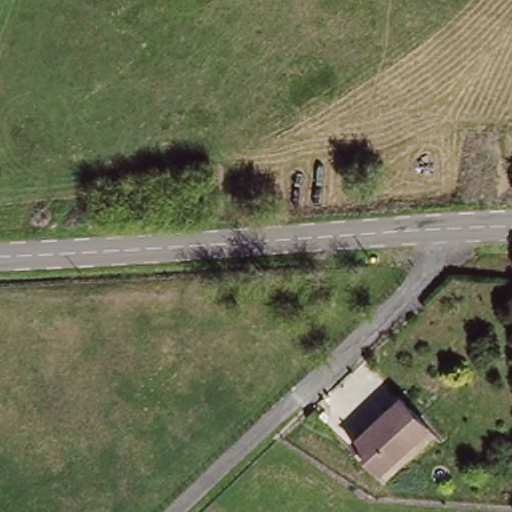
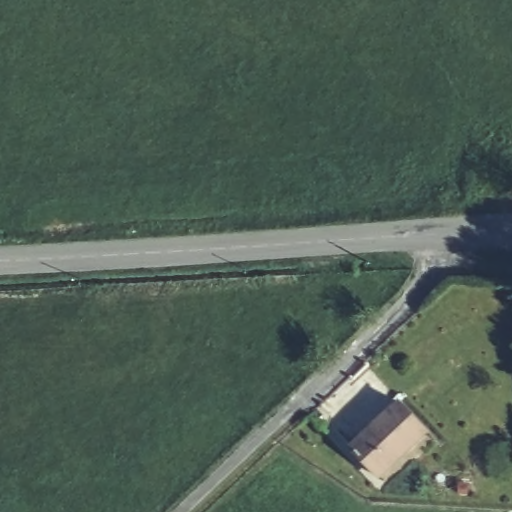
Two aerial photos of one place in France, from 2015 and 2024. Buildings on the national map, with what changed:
unchanged [(381,475),(355,447),(405,402),(430,427),(381,475)]

